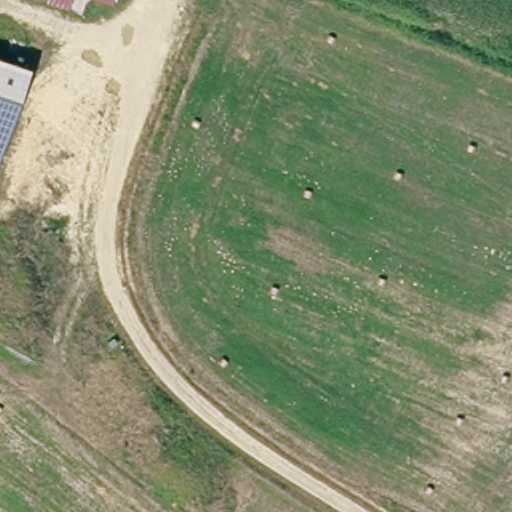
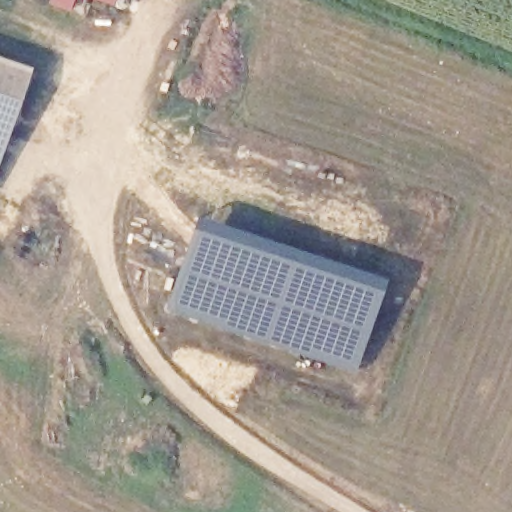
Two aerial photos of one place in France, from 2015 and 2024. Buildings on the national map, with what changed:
unchanged [(83,0),(117,0),(114,10),(83,0)]
unchanged [(33,69),(0,160),(0,58),(33,69)]
new [(388,282),(356,372),(165,310),(196,217),(388,282)]

